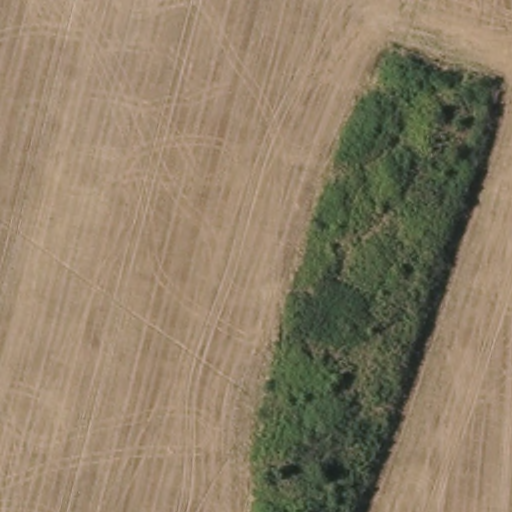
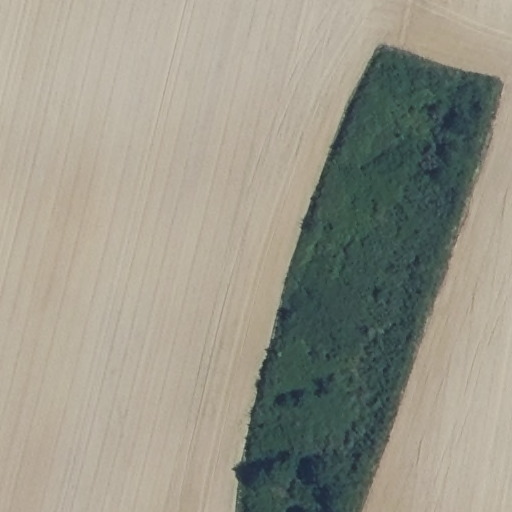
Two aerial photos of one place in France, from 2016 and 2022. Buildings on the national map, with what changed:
[]

